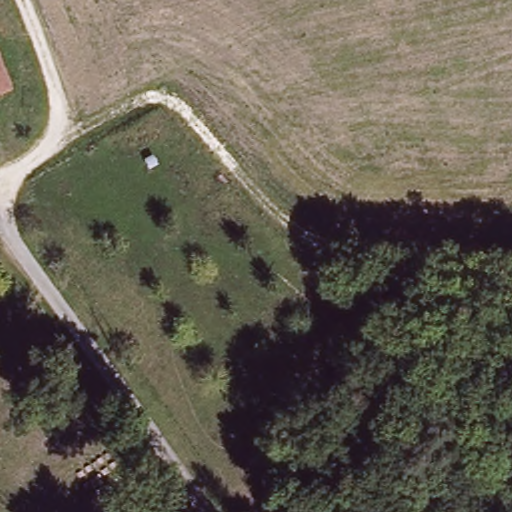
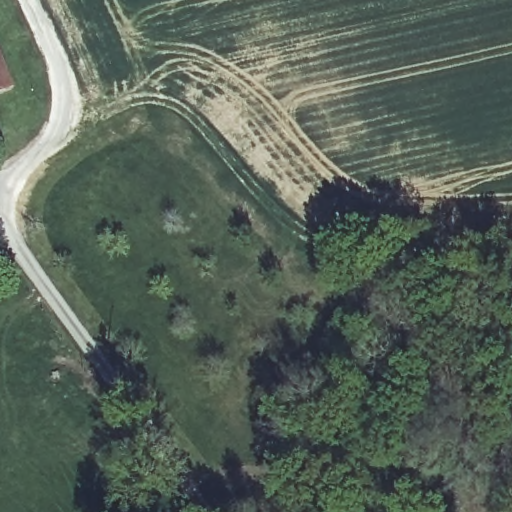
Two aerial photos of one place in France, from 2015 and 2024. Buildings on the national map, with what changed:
unchanged [(0,91),(0,57),(14,84),(0,91)]

